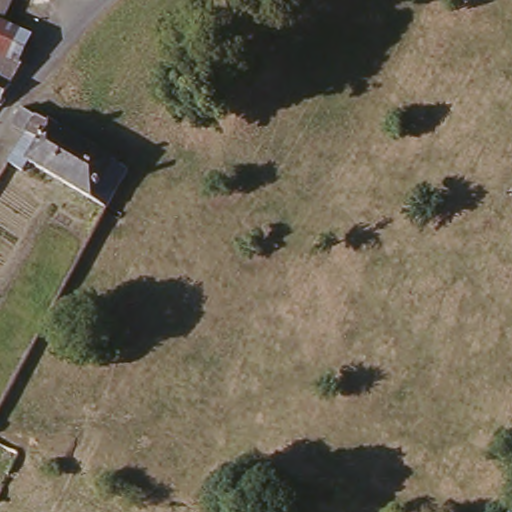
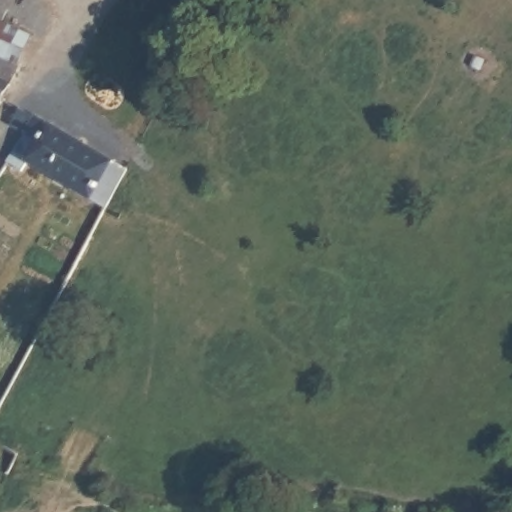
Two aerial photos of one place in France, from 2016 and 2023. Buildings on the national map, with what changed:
unchanged [(5,16),(0,13),(0,0),(13,0),(5,16)]
unchanged [(34,31),(19,62),(0,51),(0,13),(5,16),(34,31)]
unchanged [(0,68),(0,62),(2,64),(0,68)]
unchanged [(0,91),(0,72),(8,77),(0,91)]
unchanged [(4,166),(10,156),(21,135),(6,127),(17,108),(126,172),(131,174),(111,211),(26,165),(21,176),(4,166)]

